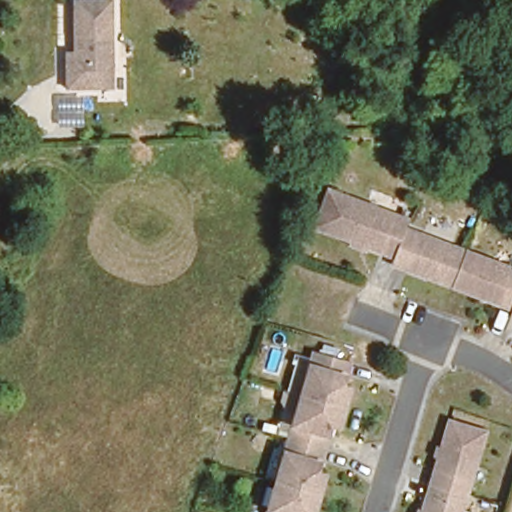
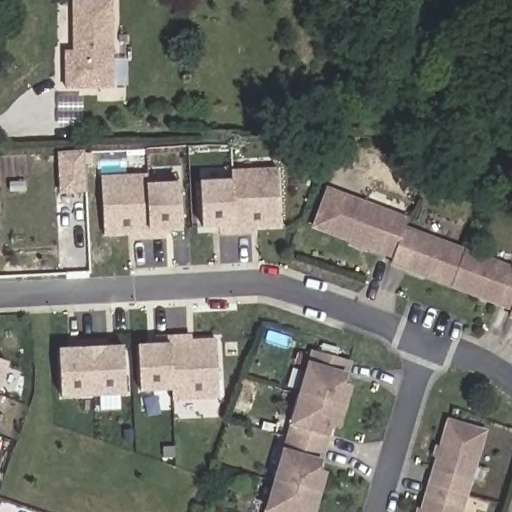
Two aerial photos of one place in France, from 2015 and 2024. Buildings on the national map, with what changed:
unchanged [(69,83),(65,53),(78,51),(77,40),(68,41),(63,1),(77,0),(101,0),(109,79),(69,83)]
new [(59,195),(58,152),(83,153),(86,194),(59,195)]
new [(236,229),(236,224),(232,181),(232,172),(277,170),(281,227),(236,229)]
new [(104,234),(101,179),(147,177),(147,187),(149,230),(149,233),(104,234)]
new [(201,182),(232,181),(236,224),(203,227),(201,182)]
new [(149,230),(147,187),(178,184),(181,228),(149,230)]
unchanged [(389,263),(392,255),(311,227),(324,190),(405,219),(403,225),(451,246),(438,283),(389,263)]
unchanged [(510,312),(438,283),(451,246),(512,272),(512,322),(508,321),(510,312)]
new [(174,400),(174,389),(172,344),(171,342),(215,340),(218,397),(174,400)]
new [(142,392),(139,346),(172,344),(174,389),(142,392)]
new [(62,396),(59,351),(123,348),(126,394),(62,396)]
unchanged [(336,432),(332,431),(325,456),(283,440),(304,361),(307,349),(347,361),(345,374),(340,383),(348,387),(336,432)]
new [(0,380),(0,360),(7,363),(0,380)]
unchanged [(441,424),(476,434),(459,497),(424,488),(441,424)]
unchanged [(279,453),(316,462),(315,469),(322,473),(310,512),(259,512),(279,453)]
unchanged [(454,512),(417,512),(424,488),(459,497),(454,512)]

